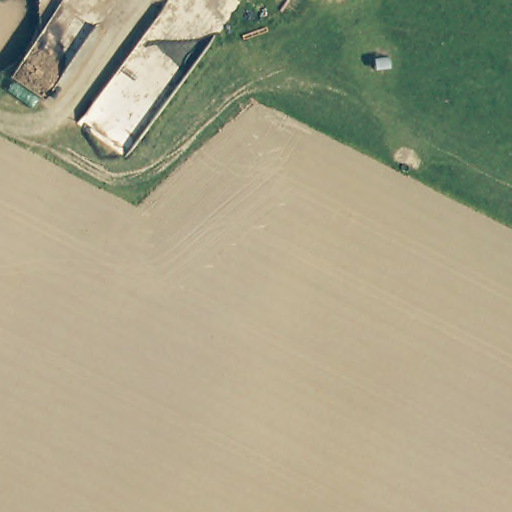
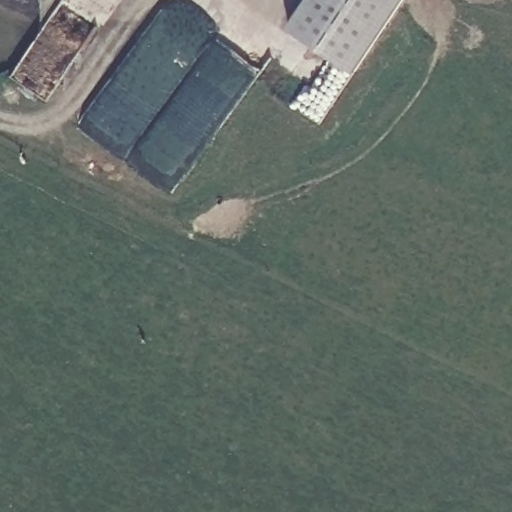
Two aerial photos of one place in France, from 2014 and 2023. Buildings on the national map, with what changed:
new [(355,75),(289,30),(309,0),(406,0),(355,75)]

